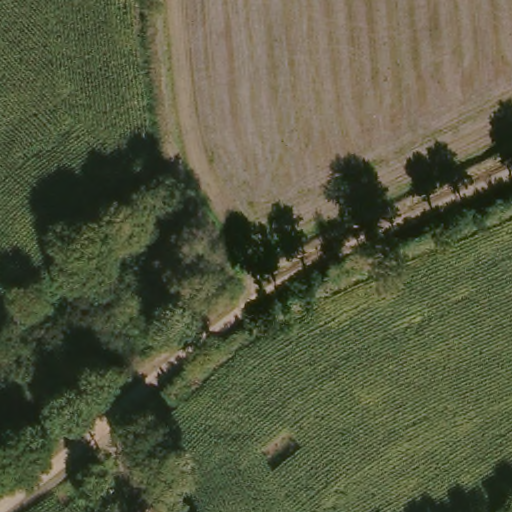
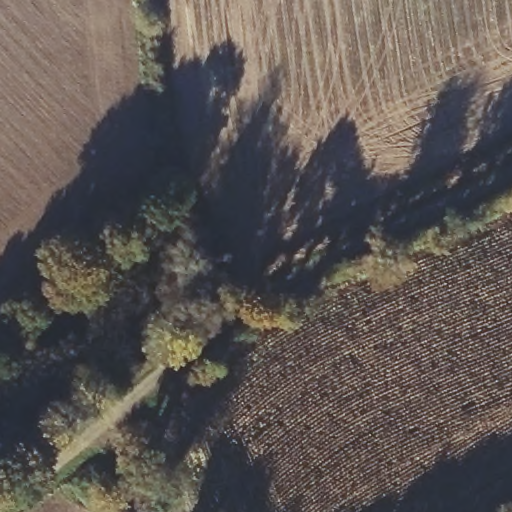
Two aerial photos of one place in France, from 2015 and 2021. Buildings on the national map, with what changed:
unchanged [(42,408),(52,419),(44,427),(34,417),(42,408)]

